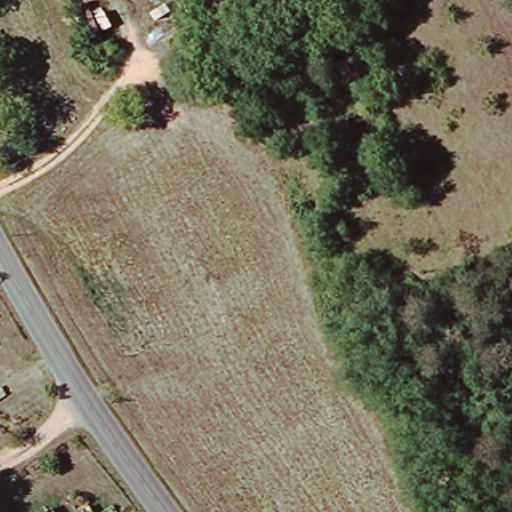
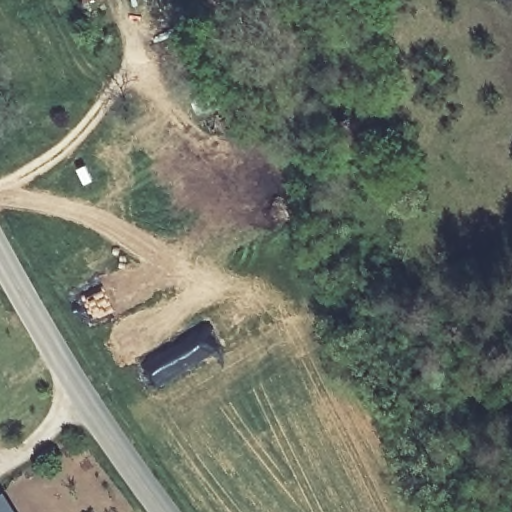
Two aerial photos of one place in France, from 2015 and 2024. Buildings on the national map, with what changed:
unchanged [(366,144),(349,152),(336,127),(355,119),(366,144)]
new [(15,512),(0,512),(0,493),(2,491),(15,512)]

